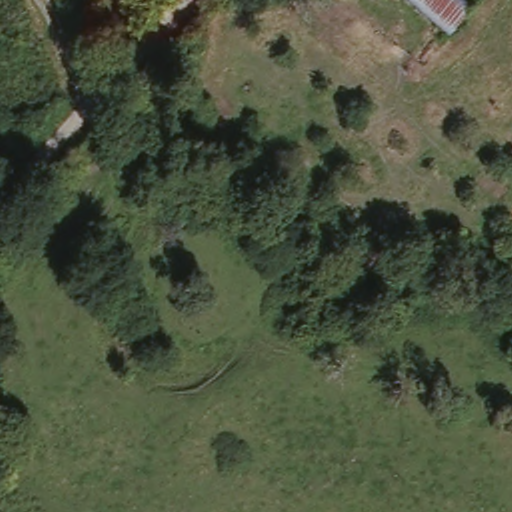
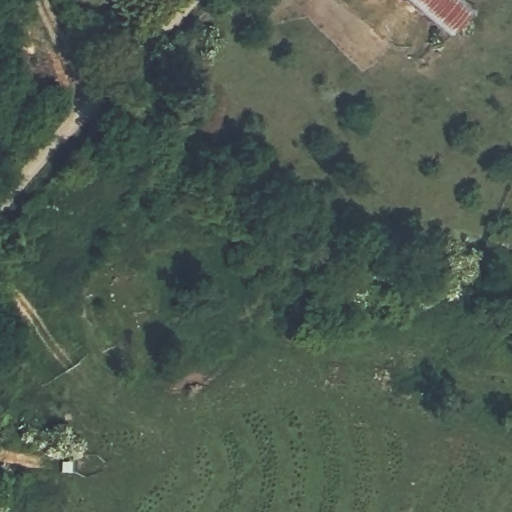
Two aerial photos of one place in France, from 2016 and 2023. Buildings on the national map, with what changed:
unchanged [(450,42),(400,0),(463,0),(476,11),(450,42)]

